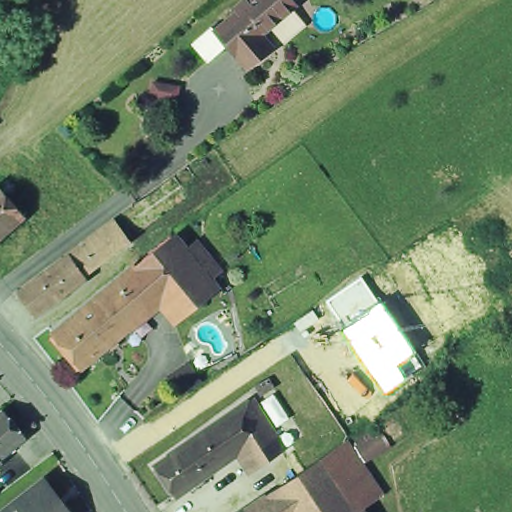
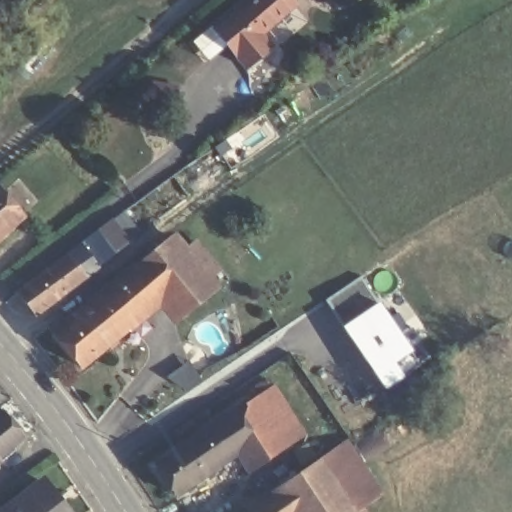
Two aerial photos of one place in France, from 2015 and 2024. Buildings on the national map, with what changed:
unchanged [(225,31),(245,13),(243,10),(253,2),(255,4),(260,0),(295,0),(301,7),(270,34),(280,46),(257,67),(237,45),(219,61),(202,43),(220,26),(225,31)]
unchanged [(0,236),(0,188),(24,215),(0,236)]
unchanged [(113,219),(129,240),(90,270),(74,250),(113,219)]
unchanged [(164,299),(137,265),(171,237),(215,290),(180,319),(164,299)]
unchanged [(36,315),(18,291),(34,280),(74,250),(90,270),(83,275),(85,278),(65,293),(68,297),(53,309),(50,305),(36,315)]
unchanged [(53,334),(100,295),(117,280),(137,265),(164,299),(145,314),(127,328),(80,367),(53,334)]
unchanged [(337,323),(342,320),(326,301),(361,276),(385,305),(424,364),(385,394),(337,323)]
new [(254,400),(277,386),(305,434),(285,449),(254,400)]
unchanged [(285,449),(252,470),(239,451),(227,459),(210,429),(254,400),(285,449)]
unchanged [(5,412),(25,436),(0,456),(0,416),(5,412)]
unchanged [(174,495),(155,465),(210,429),(227,459),(174,495)]
unchanged [(379,490),(355,506),(320,454),(344,439),(379,490)]
unchanged [(277,484),(320,454),(355,506),(359,512),(296,512),(277,484)]
unchanged [(53,483),(67,501),(75,512),(16,512),(53,483)]
unchanged [(277,484),(296,512),(252,512),(247,504),(277,484)]
unchanged [(247,504),(252,512),(235,512),(247,504)]

